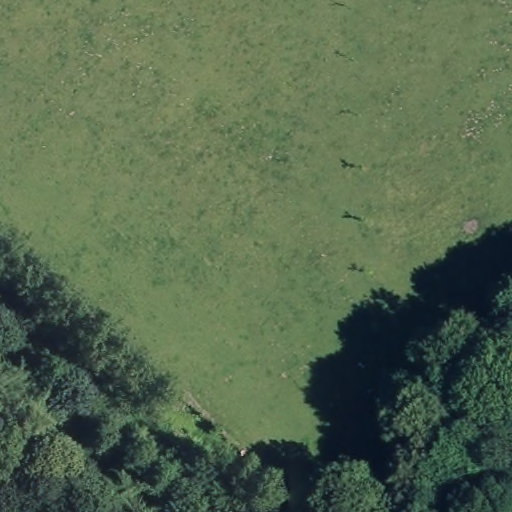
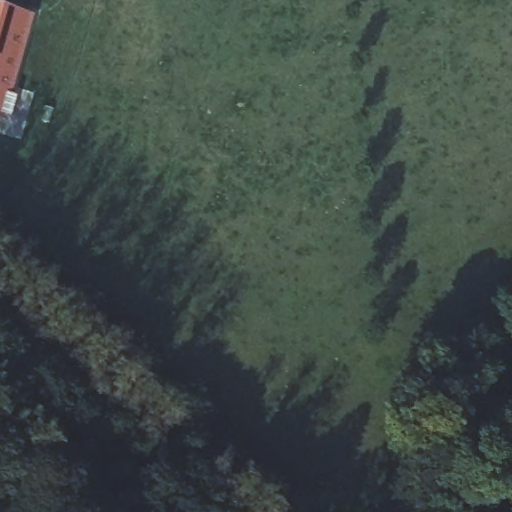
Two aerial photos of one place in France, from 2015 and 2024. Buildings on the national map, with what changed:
new [(32,15),(11,91),(18,94),(12,116),(0,113),(0,6),(32,15)]

